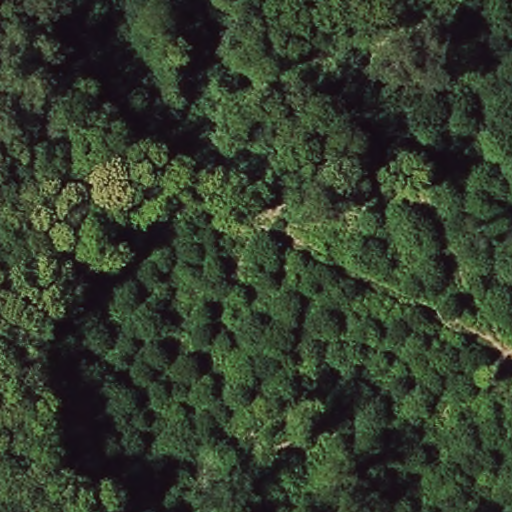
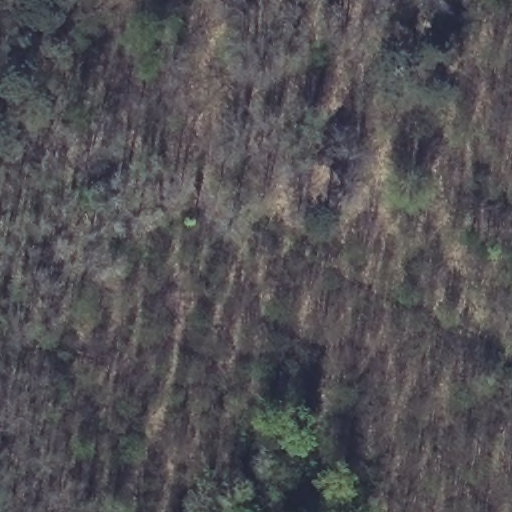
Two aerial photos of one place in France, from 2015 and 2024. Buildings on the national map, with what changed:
[]

